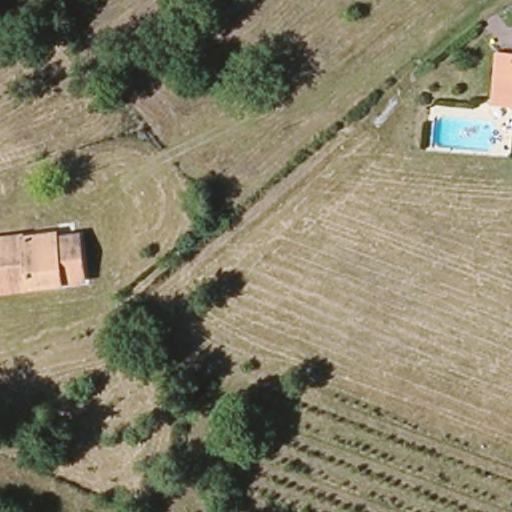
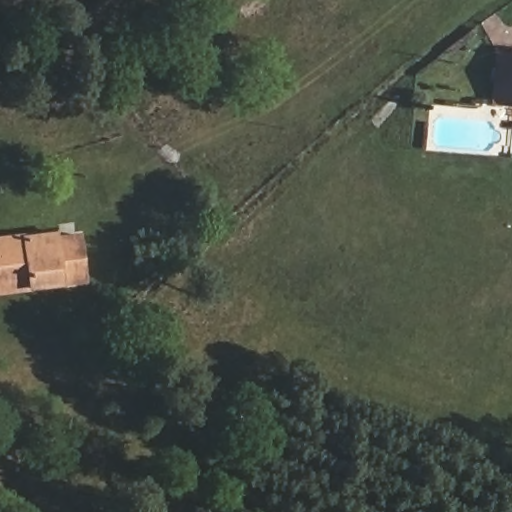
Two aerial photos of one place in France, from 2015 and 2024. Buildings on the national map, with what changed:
unchanged [(512,54),(512,108),(486,105),(491,53),(512,54)]
unchanged [(54,238),(76,235),(80,284),(0,295),(0,239),(54,234),(54,238)]

